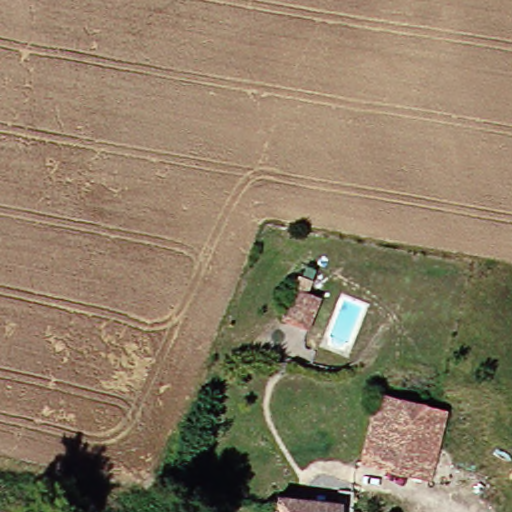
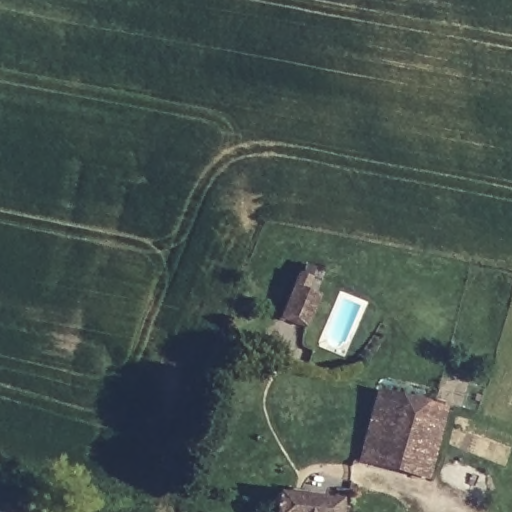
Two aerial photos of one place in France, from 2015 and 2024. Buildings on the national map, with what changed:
unchanged [(316,275),(310,289),(325,295),(313,325),(286,315),(303,270),(316,275)]
unchanged [(382,393),(451,407),(440,462),(372,447),(382,393)]
unchanged [(438,479),(368,464),(372,447),(440,462),(438,479)]
unchanged [(284,512),(287,493),(352,501),(351,512),(284,512)]

